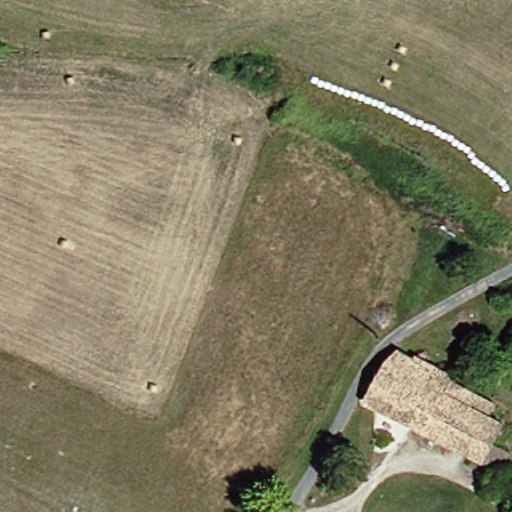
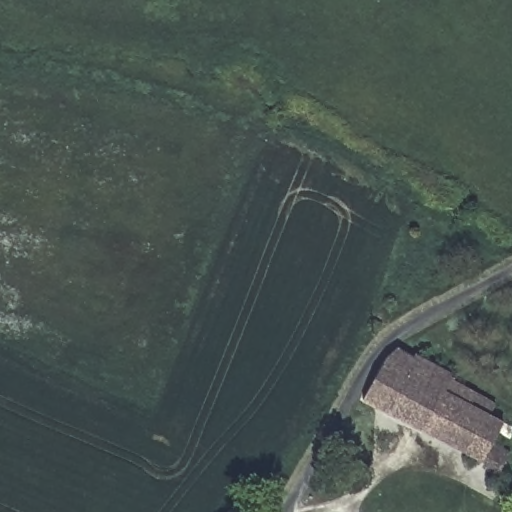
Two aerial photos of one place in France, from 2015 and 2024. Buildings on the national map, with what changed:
unchanged [(408,350),(417,358),(421,353),(456,372),(445,394),(512,431),(505,446),(512,451),(512,467),(508,477),(373,401),(408,350)]

